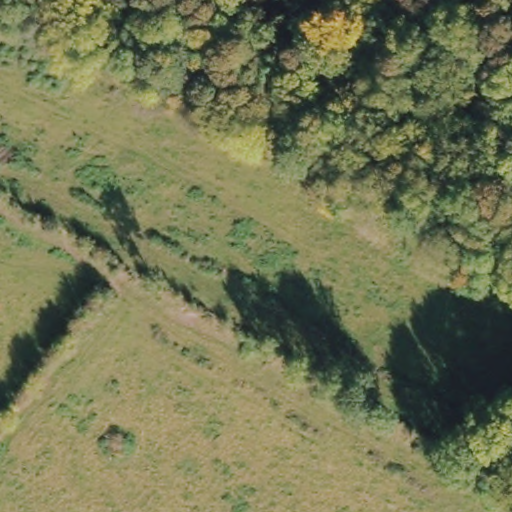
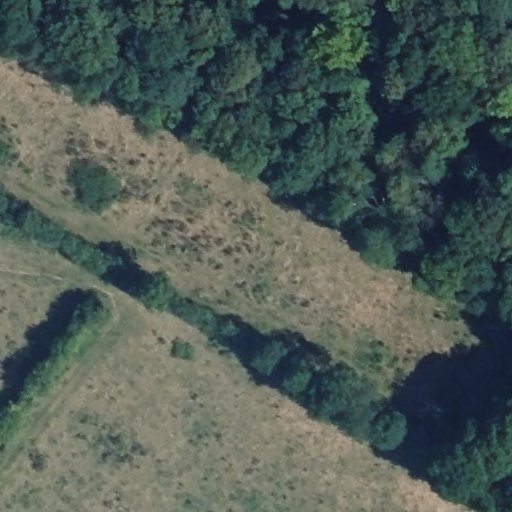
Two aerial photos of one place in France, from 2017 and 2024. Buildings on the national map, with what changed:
unchanged [(282,0),(310,0),(304,11),(282,0)]

